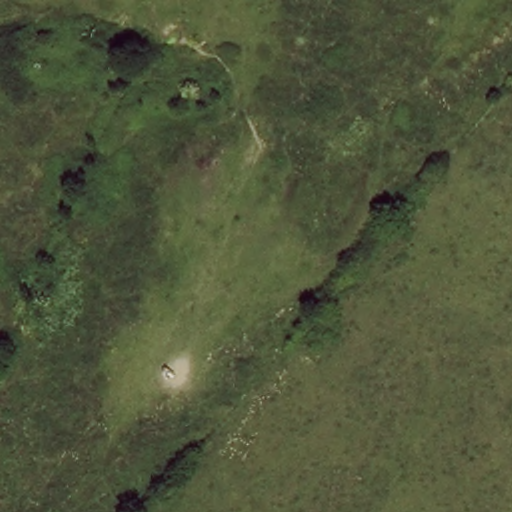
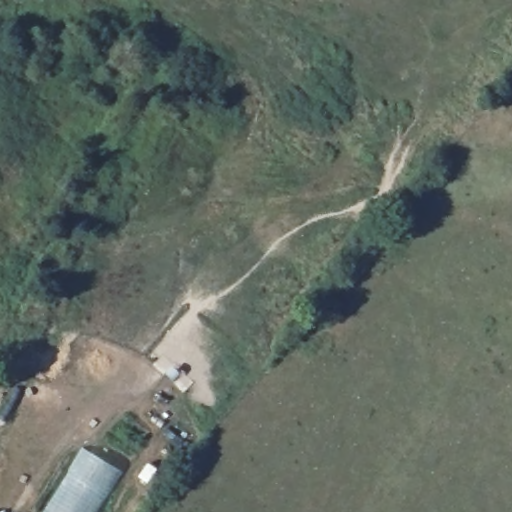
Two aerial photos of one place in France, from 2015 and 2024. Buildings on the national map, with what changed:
new [(83,449),(124,473),(99,512),(43,512),(83,449)]

